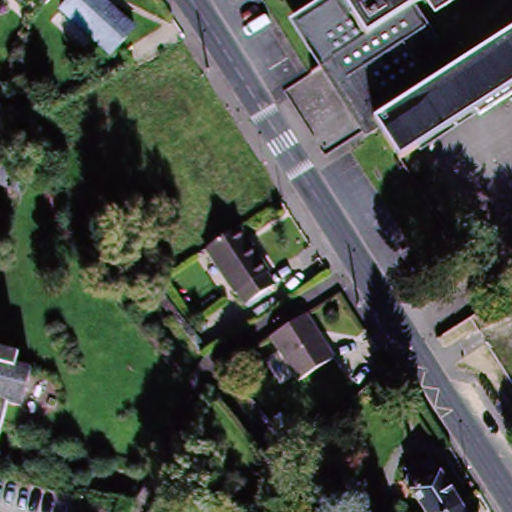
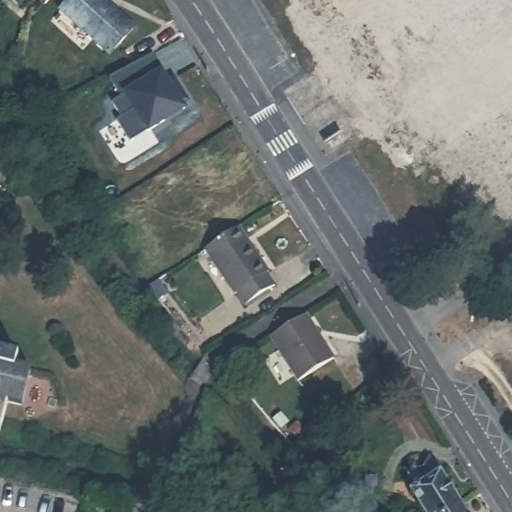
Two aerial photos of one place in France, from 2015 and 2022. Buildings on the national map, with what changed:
unchanged [(16,18),(0,1),(0,0),(35,0),(16,18)]
unchanged [(73,0),(104,0),(136,29),(111,56),(62,11),(73,0)]
demolished [(412,10),(452,72),(512,33),(512,100),(482,120),(477,114),(400,162),(335,62),(325,69),(295,24),(331,0),(426,0),(412,10)]
new [(130,109),(121,94),(130,89),(121,72),(152,55),(161,72),(159,74),(165,84),(170,81),(183,103),(177,106),(180,111),(124,142),(112,119),(130,109)]
unchanged [(38,164),(22,203),(0,194),(0,148),(38,164)]
unchanged [(275,271),(273,272),(282,285),(250,306),(241,295),(239,294),(212,252),(247,229),(275,271)]
unchanged [(168,288),(154,298),(147,286),(160,277),(168,288)]
unchanged [(340,355),(304,379),(276,335),(312,312),(340,355)]
unchanged [(17,358),(15,368),(28,372),(18,408),(7,405),(0,428),(0,354),(17,358)]
unchanged [(428,465),(451,498),(432,512),(416,512),(398,485),(428,465)]
unchanged [(460,512),(432,512),(451,498),(460,512)]
unchanged [(160,512),(152,512),(154,509),(160,512)]

